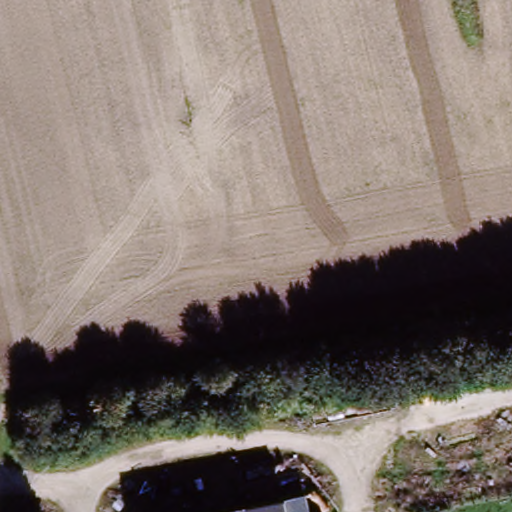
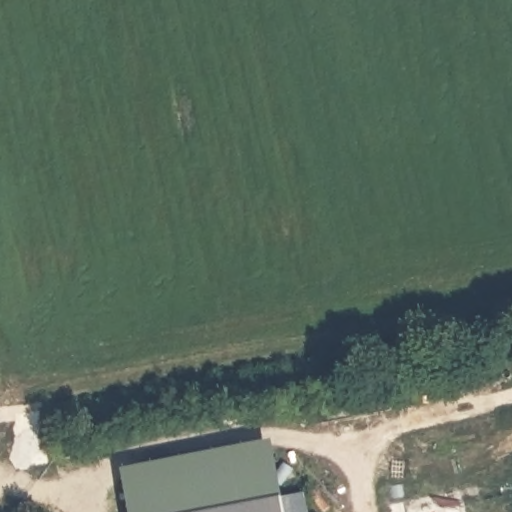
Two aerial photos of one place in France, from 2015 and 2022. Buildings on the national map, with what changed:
new [(123,468),(272,439),(286,502),(230,512),(133,512),(123,468)]
unchanged [(309,498),(312,512),(289,512),(286,502),(309,498)]
unchanged [(286,502),(289,512),(230,512),(286,502)]

